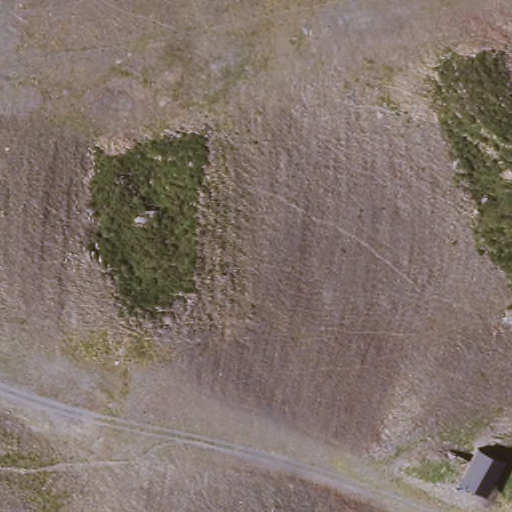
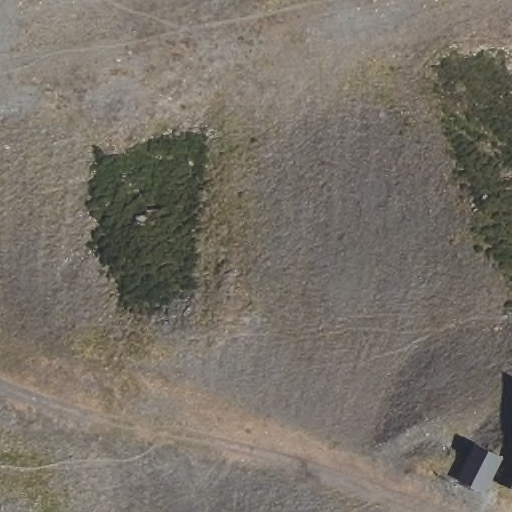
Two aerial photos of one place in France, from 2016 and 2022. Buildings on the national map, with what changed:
unchanged [(502,460),(489,495),(473,490),(487,454),(502,460)]

